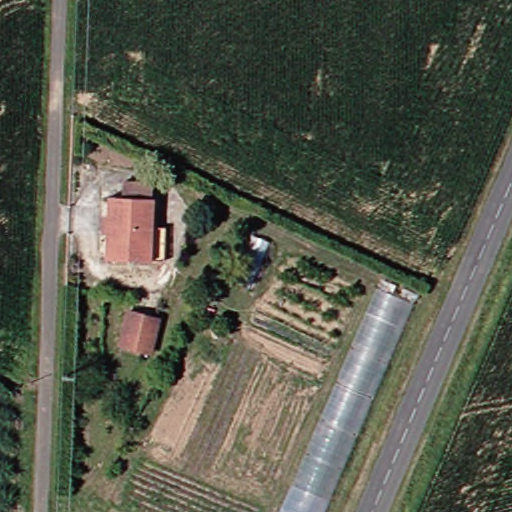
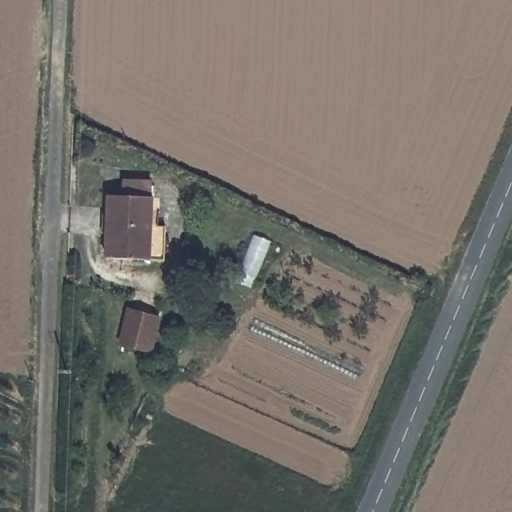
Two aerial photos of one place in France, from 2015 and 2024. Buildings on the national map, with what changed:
unchanged [(174,255),(157,255),(114,255),(115,190),(159,191),(158,218),(175,218),(174,255)]
demolished [(380,285),(420,302),(329,512),(286,512),(380,285)]
unchanged [(127,343),(135,310),(164,316),(157,348),(127,343)]

